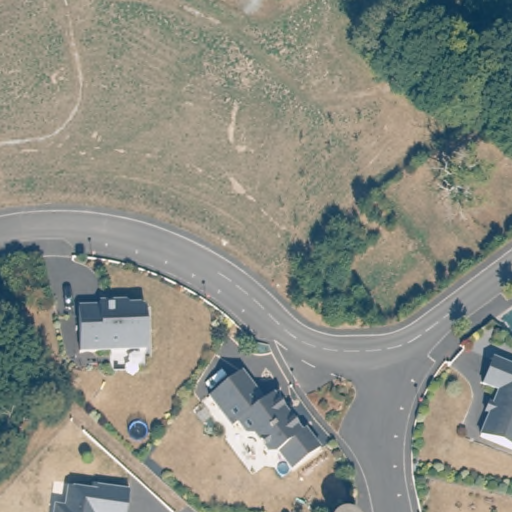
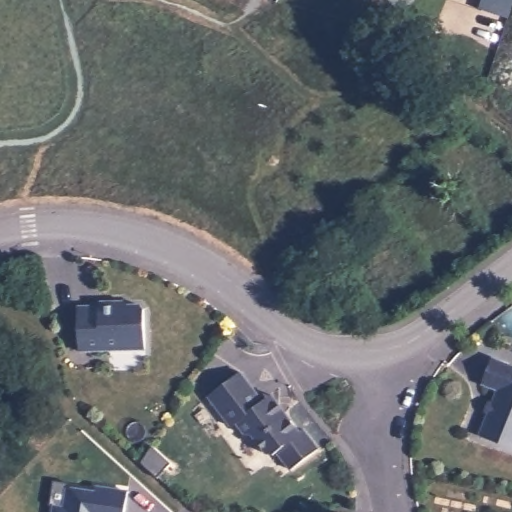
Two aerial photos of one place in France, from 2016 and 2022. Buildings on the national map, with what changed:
unchanged [(407,12),(391,0),(417,0),(407,12)]
new [(509,18),(481,9),(483,0),(512,0),(512,7),(509,18)]
unchanged [(144,308),(145,348),(80,350),(79,306),(99,305),(99,301),(119,300),(124,300),(130,300),(130,304),(140,304),(144,308)]
unchanged [(489,404),(493,406),(499,392),(483,386),(493,361),(512,368),(512,450),(480,438),(489,415),(484,413),(489,404)]
unchanged [(263,404),(265,402),(272,397),(287,418),(300,435),(304,432),(319,451),(292,472),(278,454),(268,457),(254,439),(245,438),(237,425),(232,429),(209,399),(240,375),(263,404)]
unchanged [(65,506),(68,486),(96,491),(97,485),(129,490),(125,512),(54,512),(55,504),(65,506)]

